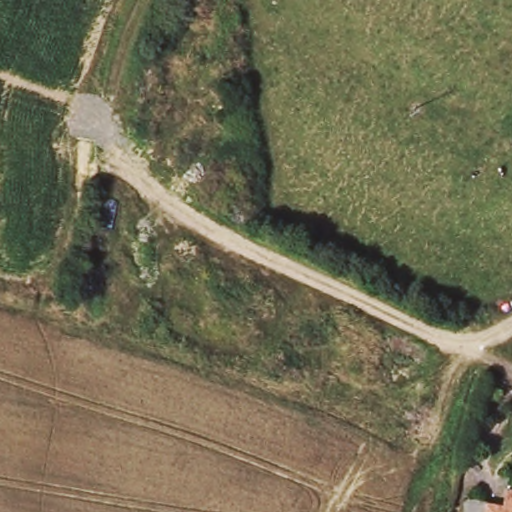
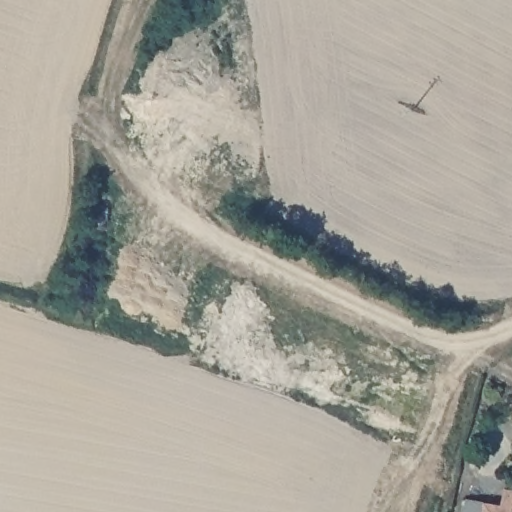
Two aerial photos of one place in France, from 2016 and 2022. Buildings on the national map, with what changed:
unchanged [(476,507),(479,495),(510,501),(512,492),(512,512),(465,512),(465,506),(476,507)]

